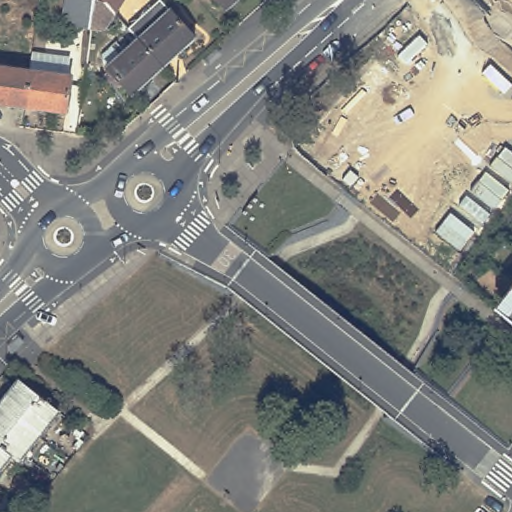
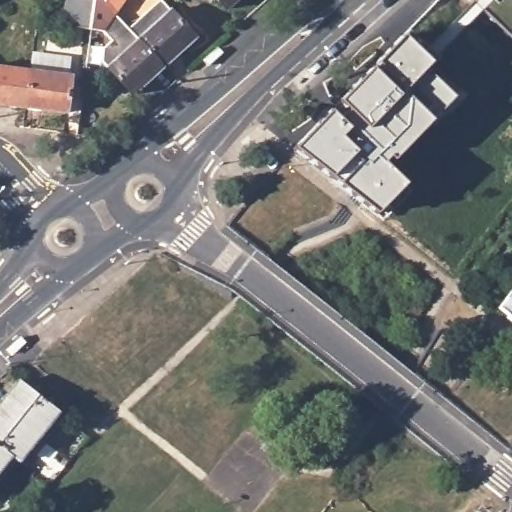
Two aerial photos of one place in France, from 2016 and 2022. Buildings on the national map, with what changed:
unchanged [(70,0),(131,0),(120,16),(109,34),(94,31),(66,28),(70,0)]
unchanged [(213,0),(239,0),(225,13),(213,0)]
unchanged [(477,0),(512,0),(512,34),(477,0)]
unchanged [(165,2),(173,11),(175,10),(200,40),(169,69),(142,40),(134,30),(165,2)]
new [(326,110),(335,119),(343,110),(335,102),(367,69),(400,36),(428,64),(422,71),(450,97),(424,120),(426,121),(390,160),(386,156),(380,163),(402,185),(372,215),(328,179),(290,150),(326,110)]
unchanged [(136,97),(110,69),(112,67),(106,61),(106,56),(121,44),(129,52),(142,40),(169,69),(136,97)]
unchanged [(71,52),(76,72),(71,110),(28,105),(34,66),(36,47),(71,52)]
unchanged [(28,105),(0,101),(0,61),(34,66),(28,105)]
unchanged [(495,310),(512,289),(512,323),(495,310)]
unchanged [(3,404),(24,379),(61,410),(41,435),(3,404)]
unchanged [(20,461),(13,455),(0,444),(0,408),(3,404),(41,435),(20,461)]
unchanged [(0,470),(0,444),(13,455),(0,470)]

